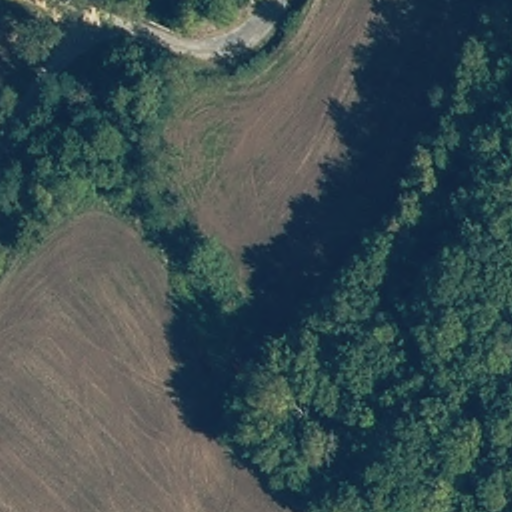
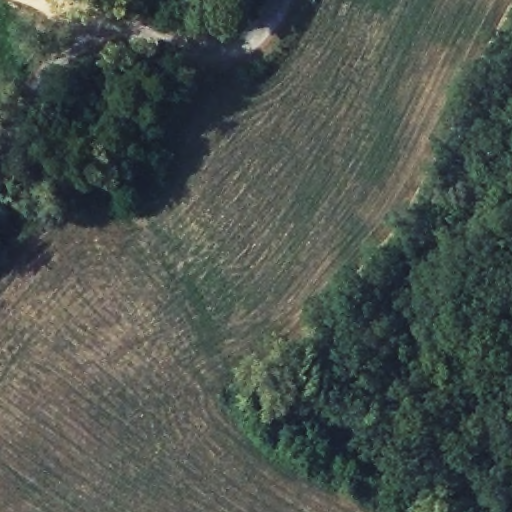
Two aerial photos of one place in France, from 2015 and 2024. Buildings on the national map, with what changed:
[]

